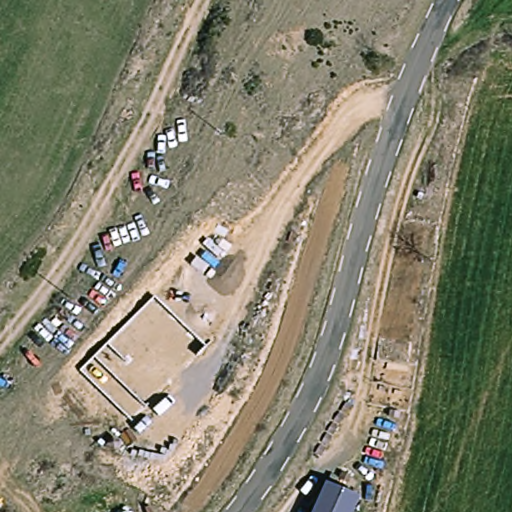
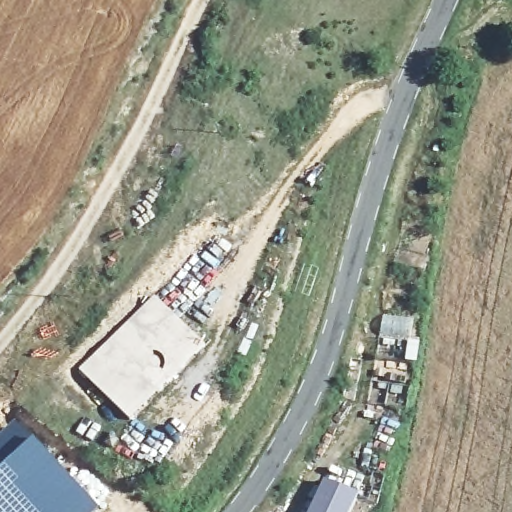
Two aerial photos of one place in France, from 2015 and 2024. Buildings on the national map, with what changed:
unchanged [(154,296),(205,346),(131,420),(80,370),(154,296)]
new [(0,439),(16,424),(101,512),(100,512),(0,512),(0,439)]
unchanged [(325,484),(358,500),(352,512),(311,512),(325,484)]

